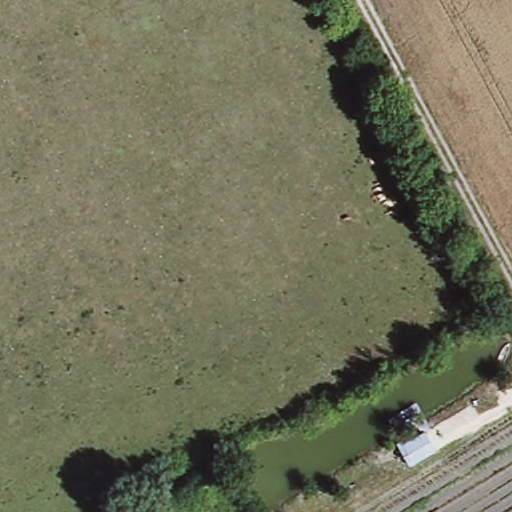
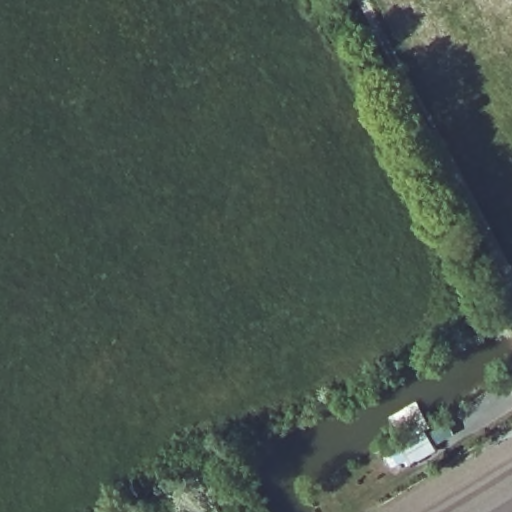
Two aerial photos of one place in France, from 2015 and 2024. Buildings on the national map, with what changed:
[]

